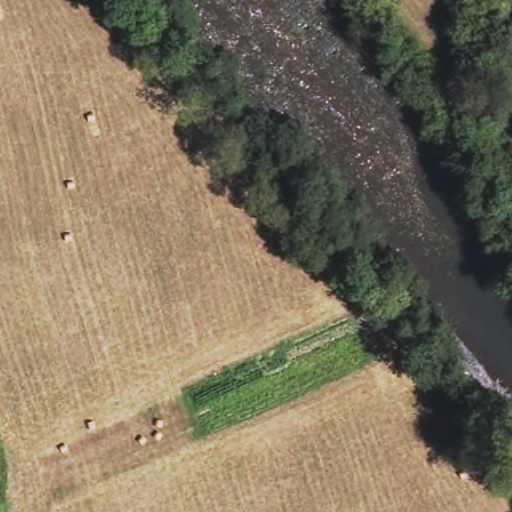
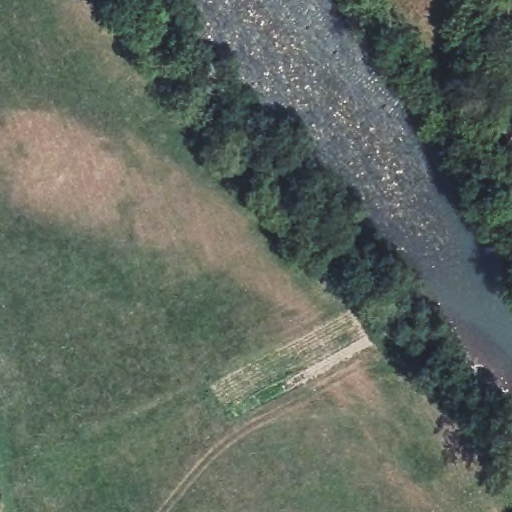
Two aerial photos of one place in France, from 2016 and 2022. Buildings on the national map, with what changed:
[]

